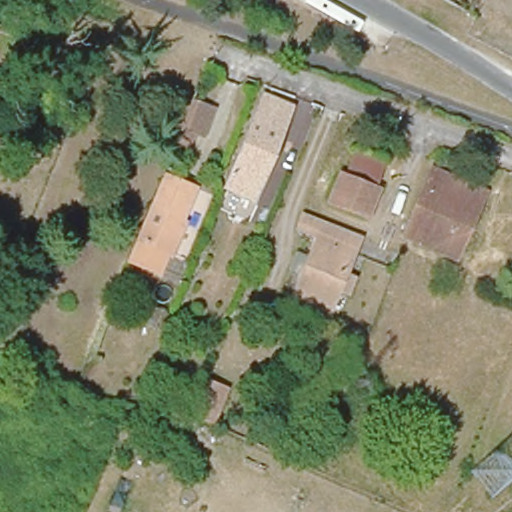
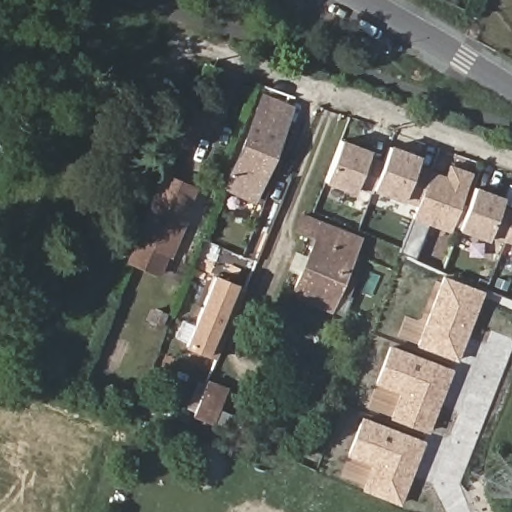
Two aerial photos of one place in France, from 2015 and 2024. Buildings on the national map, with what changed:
unchanged [(221,104),(207,133),(184,122),(198,93),(221,104)]
unchanged [(286,106),(249,195),(227,186),(263,97),(286,106)]
new [(357,184),(353,193),(324,182),(342,138),(370,149),(369,154),(385,161),(374,191),(357,184)]
new [(404,198),(403,201),(374,191),(385,161),(391,144),(421,155),(418,164),(432,169),(418,204),(404,198)]
new [(418,204),(432,169),(446,174),(450,163),(474,173),(451,234),(413,219),(418,204)]
demolished [(432,168),(484,189),(455,256),(405,235),(432,168)]
demolished [(373,185),(377,187),(365,214),(329,201),(341,171),(345,173),(373,185)]
unchanged [(201,191),(188,221),(176,216),(151,277),(125,268),(164,175),(201,191)]
new [(460,231),(476,187),(506,197),(502,207),(512,211),(512,223),(505,242),(490,237),(488,241),(460,231)]
unchanged [(353,293),(339,288),(332,306),(295,291),(317,234),(299,228),(305,213),(361,235),(355,250),(347,269),(361,273),(353,293)]
new [(505,242),(512,223),(512,244),(505,242)]
new [(211,273),(250,289),(221,359),(182,342),(211,273)]
new [(443,276),(484,291),(458,360),(417,345),(443,276)]
new [(401,393),(375,383),(390,344),(454,368),(429,433),(390,418),(401,393)]
unchanged [(205,383),(229,391),(217,427),(193,419),(205,383)]
new [(373,465),(348,456),(362,416),(427,441),(401,505),(363,491),(373,465)]

